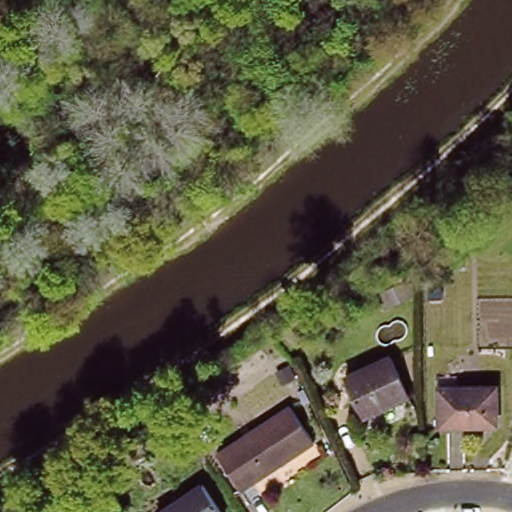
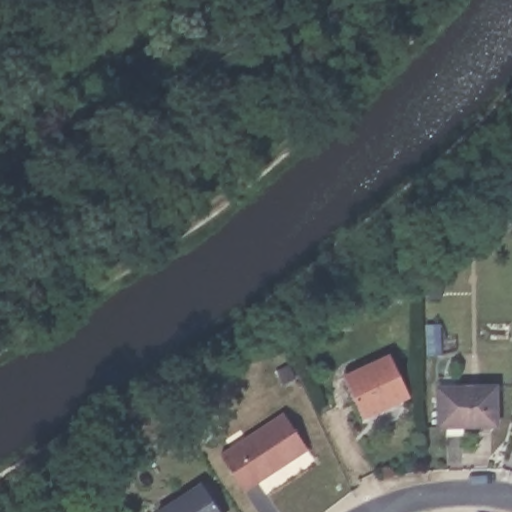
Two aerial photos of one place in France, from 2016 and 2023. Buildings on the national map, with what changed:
unchanged [(396,355),(414,394),(369,414),(352,375),(396,355)]
unchanged [(503,384),(503,423),(446,423),(446,385),(503,384)]
unchanged [(245,490),(221,453),(294,407),(318,443),(326,456),(264,495),(256,482),(245,490)]
unchanged [(225,512),(162,512),(156,503),(201,475),(225,512)]

